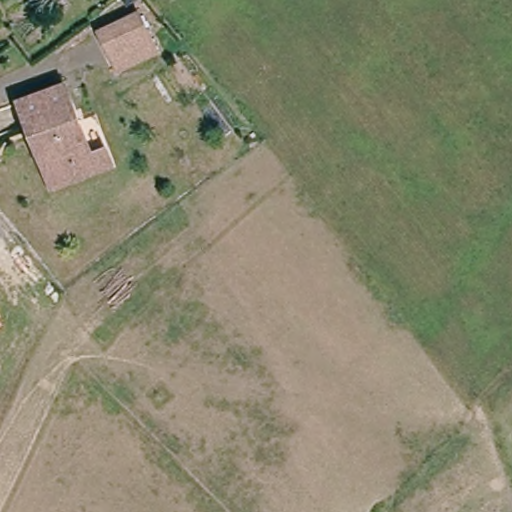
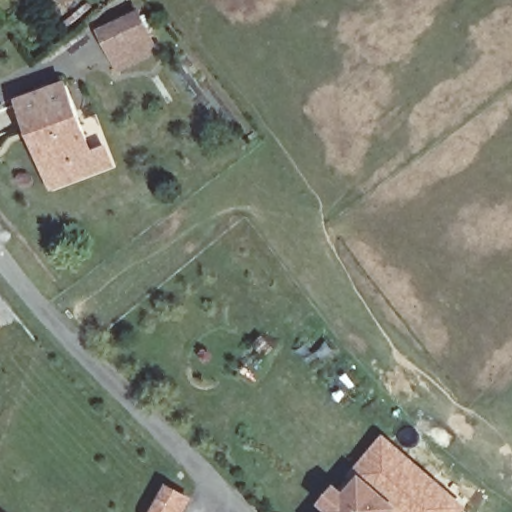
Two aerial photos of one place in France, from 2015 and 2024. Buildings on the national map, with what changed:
unchanged [(141,13),(157,50),(119,67),(102,30),(141,13)]
unchanged [(26,120),(20,98),(42,94),(71,85),(84,133),(89,154),(103,153),(107,171),(73,178),(44,186),(26,120)]
unchanged [(0,325),(0,323),(1,324),(0,325)]
new [(470,507),(466,512),(398,512),(401,509),(363,476),(357,482),(350,475),(385,435),(470,507)]
new [(327,512),(321,507),(339,486),(347,493),(363,476),(401,509),(398,512),(327,512)]
new [(193,499),(186,512),(153,512),(168,485),(193,499)]

